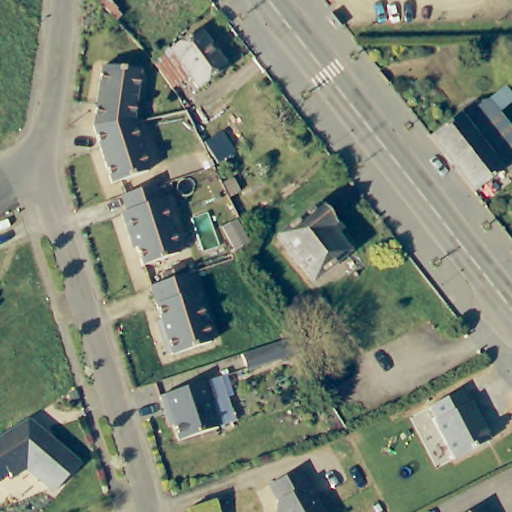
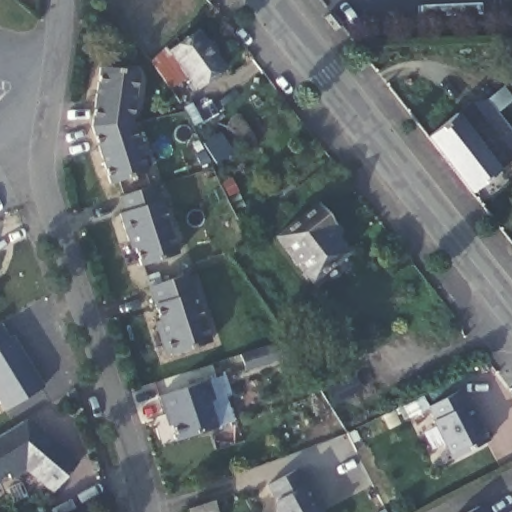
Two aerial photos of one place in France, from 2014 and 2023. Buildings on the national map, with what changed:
unchanged [(88,0),(100,0),(94,6),(88,0)]
unchanged [(169,51),(196,31),(223,69),(195,90),(186,77),(170,88),(150,61),(155,56),(147,49),(151,46),(159,53),(165,47),(169,51)]
unchanged [(91,121),(99,62),(135,66),(130,118),(91,121)]
unchanged [(472,104),(512,153),(512,163),(473,194),(430,138),(449,122),(472,104)]
unchanged [(145,167),(110,179),(91,121),(130,118),(145,167)]
new [(220,131),(234,151),(216,162),(203,141),(220,131)]
unchanged [(156,196),(159,195),(176,249),(140,261),(132,235),(128,236),(119,208),(124,207),(119,191),(141,184),(152,181),(156,196)]
unchanged [(321,205),(336,225),(331,229),(350,254),(314,281),(280,237),(321,205)]
unchanged [(175,350),(174,349),(169,350),(158,317),(163,316),(152,282),(162,279),(190,270),(212,338),(175,350)]
new [(1,323),(10,338),(14,335),(45,388),(5,412),(0,404),(0,324),(1,323)]
unchanged [(295,353),(242,369),(237,353),(285,337),(295,353)]
unchanged [(214,394),(209,396),(216,422),(177,435),(169,408),(165,409),(160,391),(207,375),(214,394)]
unchanged [(465,403),(470,402),(489,440),(451,459),(431,422),(434,421),(427,407),(459,391),(465,403)]
unchanged [(23,420),(27,417),(35,428),(44,429),(80,464),(55,490),(29,465),(13,475),(11,471),(0,478),(0,435),(23,420)]
unchanged [(302,471),(310,487),(312,486),(320,501),(317,502),(322,512),(287,512),(273,486),(302,471)]
unchanged [(220,512),(192,512),(191,510),(216,501),(220,512)]

